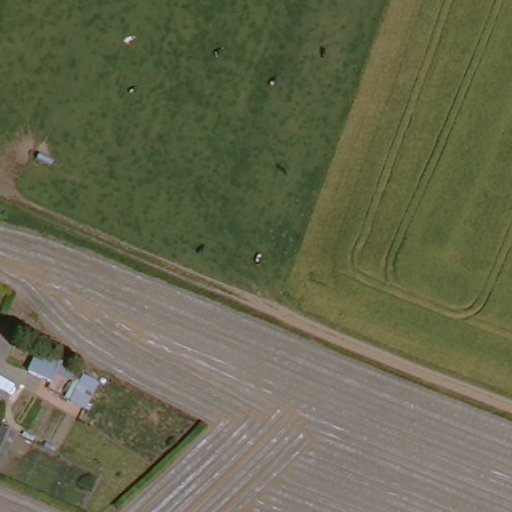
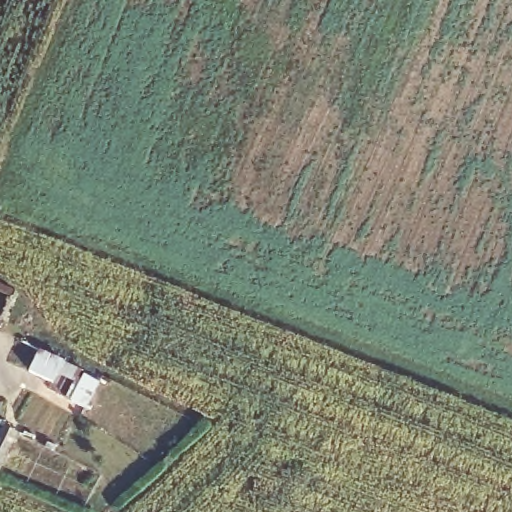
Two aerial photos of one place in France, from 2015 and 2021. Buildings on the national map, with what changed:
unchanged [(33,348),(58,360),(49,380),(24,368),(33,348)]
unchanged [(79,369),(94,376),(81,403),(66,396),(79,369)]
unchanged [(14,431),(0,465),(0,425),(14,431)]

